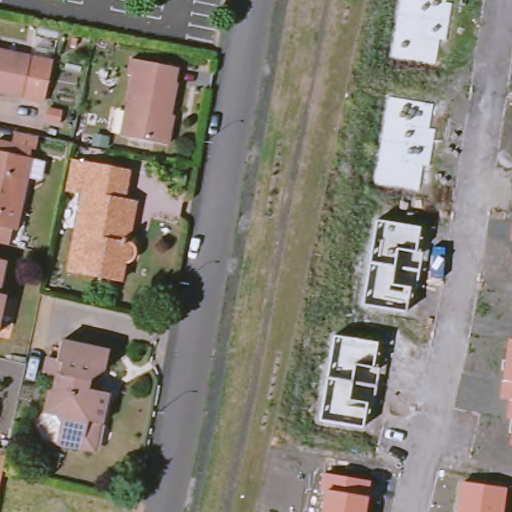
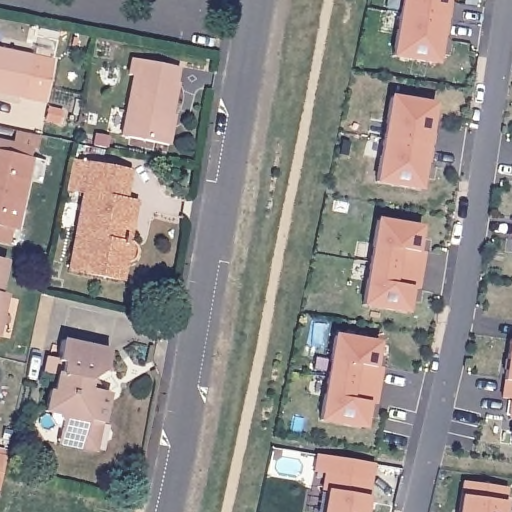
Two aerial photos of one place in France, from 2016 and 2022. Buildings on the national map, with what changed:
unchanged [(452,4),(446,40),(440,39),(437,62),(392,55),(401,0),(446,0),(446,2),(452,4)]
unchanged [(31,58),(53,62),(45,103),(22,98),(0,94),(0,51),(31,58)]
unchanged [(165,143),(157,141),(119,134),(129,75),(125,74),(127,57),(172,66),(169,82),(174,82),(168,114),(170,114),(165,143)]
unchanged [(434,105),(430,128),(435,129),(429,166),(423,165),(420,191),(374,184),(389,97),(434,105)]
unchanged [(0,229),(0,139),(32,146),(15,216),(13,216),(10,231),(0,229)]
unchanged [(130,245),(130,249),(130,252),(129,255),(127,257),(125,258),(120,260),(117,279),(63,267),(84,160),(125,167),(119,196),(132,199),(124,240),(128,242),(130,245)]
unchanged [(420,226),(417,249),(422,250),(415,291),(410,290),(406,312),(362,305),(375,219),(420,226)]
unchanged [(512,232),(512,243),(510,243),(512,232)]
unchanged [(380,343),(375,366),(379,367),(372,409),(366,408),(364,427),(319,418),(332,335),(380,343)]
unchanged [(59,440),(62,426),(64,416),(57,410),(47,408),(52,387),(54,388),(58,370),(47,368),(50,356),(60,358),(64,338),(110,348),(107,365),(87,380),(87,390),(103,388),(108,396),(102,420),(97,446),(59,440)]
unchanged [(512,416),(505,415),(508,400),(499,397),(507,340),(512,341),(512,416)]
unchanged [(512,426),(512,444),(509,443),(512,426)]
unchanged [(5,462),(2,477),(0,487),(0,461),(5,462)]
unchanged [(372,482),(367,512),(319,512),(322,497),(317,496),(323,471),(372,482)]
unchanged [(507,488),(504,512),(458,512),(462,482),(507,488)]

